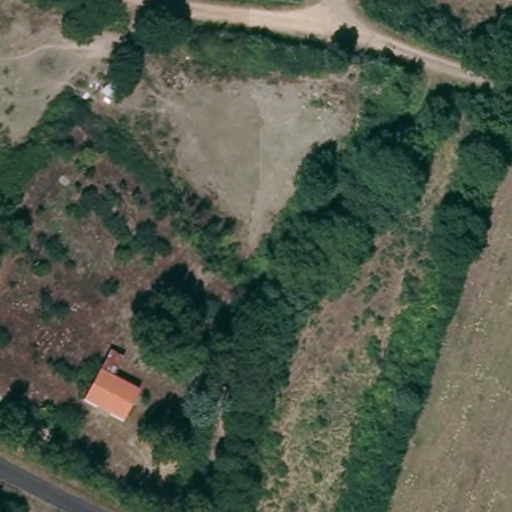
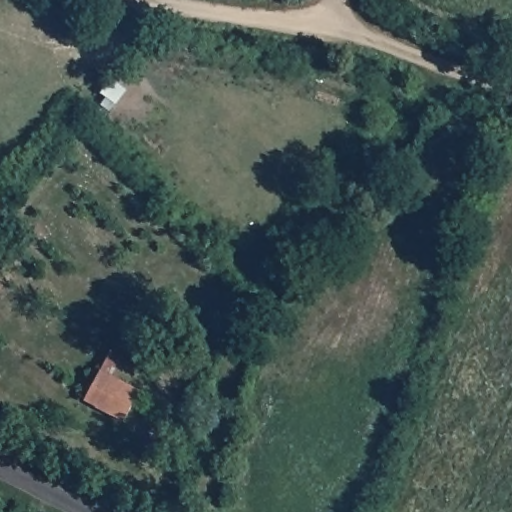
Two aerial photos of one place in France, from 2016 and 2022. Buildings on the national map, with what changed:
unchanged [(139,390),(121,424),(84,405),(103,370),(139,390)]

